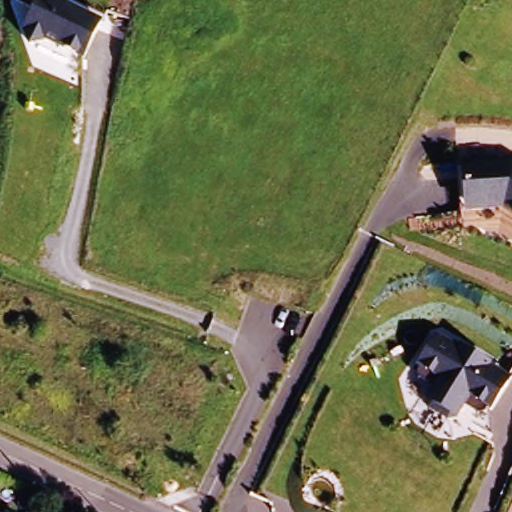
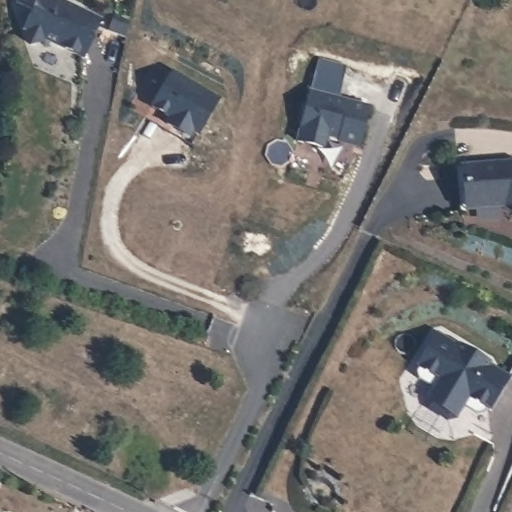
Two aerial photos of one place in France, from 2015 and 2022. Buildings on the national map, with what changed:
unchanged [(84,61),(25,35),(36,10),(20,2),(20,0),(60,0),(104,20),(84,61)]
new [(223,99),(198,137),(193,135),(190,139),(165,126),(169,120),(150,109),(172,71),(223,99)]
new [(370,105),(361,147),(336,145),(337,141),(328,140),(325,150),(295,144),(310,90),(370,105)]
unchanged [(500,212),(467,217),(456,170),(512,167),(512,220),(500,212)]
unchanged [(467,406),(452,425),(421,407),(437,383),(413,370),(434,336),(512,377),(512,378),(486,416),(467,406)]
demolished [(117,512),(103,512),(106,507),(117,512)]

